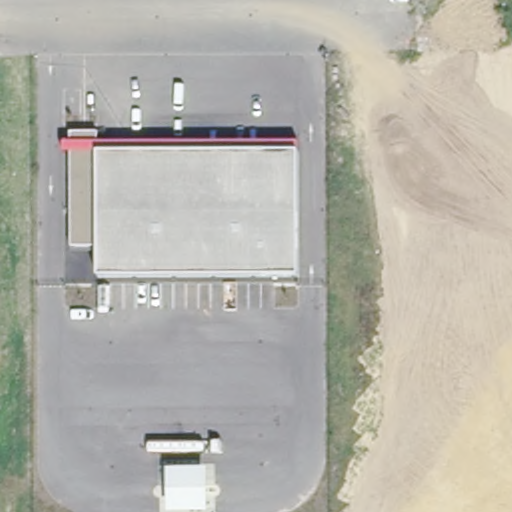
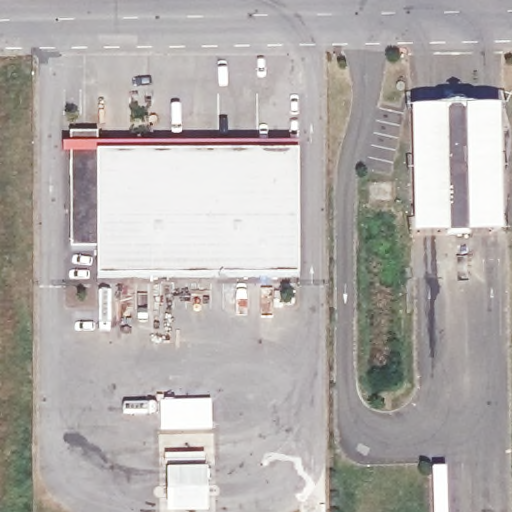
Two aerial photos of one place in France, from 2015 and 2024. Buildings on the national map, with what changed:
new [(502,105),(504,232),(416,233),(412,108),(502,105)]
unchanged [(99,132),(98,152),(298,151),(299,277),(97,277),(97,247),(71,247),(72,134),(99,132)]
new [(162,402),(212,400),(212,431),(163,432),(162,402)]
unchanged [(209,468),(210,512),(167,512),(167,470),(209,468)]

